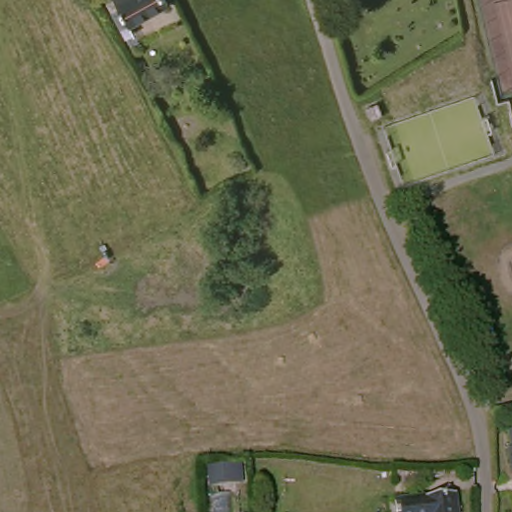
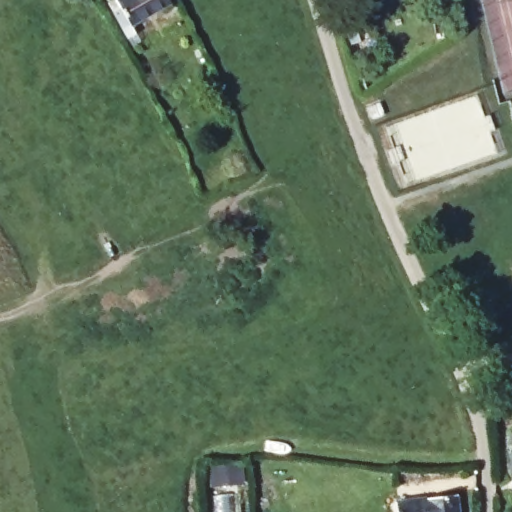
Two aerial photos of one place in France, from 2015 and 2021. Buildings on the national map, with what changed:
unchanged [(142,30),(132,35),(112,0),(175,0),(137,22),(142,30)]
unchanged [(367,106),(380,100),(386,113),(373,119),(367,106)]
unchanged [(512,431),(512,439),(510,431),(512,431)]
unchanged [(512,463),(508,450),(512,449),(512,463)]
unchanged [(239,482),(217,483),(216,467),(238,466),(239,482)]
unchanged [(460,490),(462,512),(399,512),(397,500),(460,490)]

